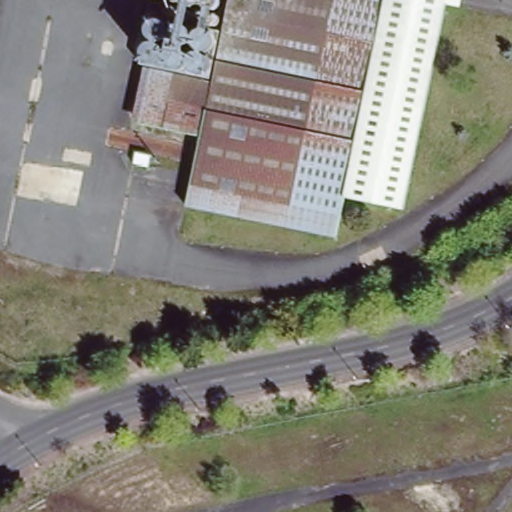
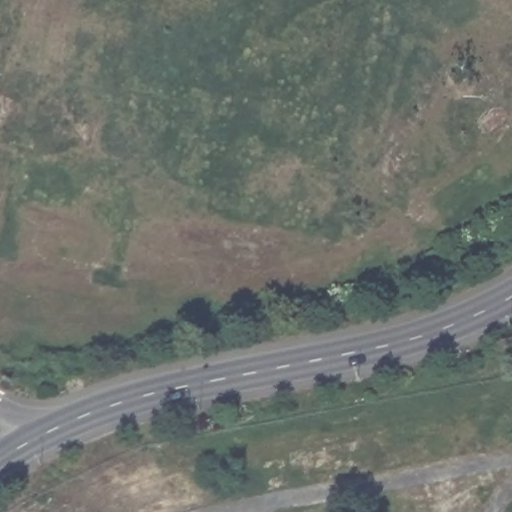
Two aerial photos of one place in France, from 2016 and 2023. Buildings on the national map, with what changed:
demolished [(155,69),(216,81),(232,0),(403,0),(332,201),(344,209),(339,236),(191,207),(205,139),(144,127),(152,81),(155,69)]
demolished [(170,1),(168,3),(167,5),(165,6),(162,6),(160,6),(158,6),(157,4),(155,2),(154,1),(153,0),(170,0),(170,1)]
demolished [(187,2),(187,5),(186,6),(185,8),(182,9),(180,10),(178,10),(176,9),(174,7),(172,6),(172,4),(171,2),(171,0),(187,0),(187,2)]
demolished [(205,1),(205,3),(205,5),(205,7),(203,10),(202,11),(200,12),(197,12),(195,12),(193,12),(192,11),(190,9),(189,7),(188,5),(188,3),(189,1),(189,0),(204,0),(205,1)]
demolished [(221,2),(222,4),(222,6),(222,8),(222,10),(221,12),(220,14),(217,15),(215,16),(213,16),(211,15),(209,14),(207,12),(207,10),(206,8),(206,6),(207,4),(207,2),(209,0),(220,0),(221,2)]
demolished [(332,201),(403,0),(433,0),(410,83),(375,203),(346,198),(344,209),(332,201)]
demolished [(410,83),(433,0),(446,0),(406,209),(375,203),(410,83)]
demolished [(173,14),(175,15),(176,16),(177,17),(177,18),(177,20),(177,21),(176,22),(175,22),(174,23),(173,24),(172,24),(170,23),(170,22),(169,22),(168,21),(167,20),(167,18),(168,17),(169,16),(170,15),(172,14),(173,14)]
demolished [(187,17),(188,17),(189,17),(190,19),(190,20),(190,21),(190,22),(190,23),(190,24),(189,25),(188,26),(187,26),(185,26),(184,26),(183,25),(182,24),(182,23),(182,22),(182,21),(182,20),(182,18),(183,17),(184,17),(185,17),(187,17)]
demolished [(201,21),(202,21),(204,22),(205,22),(205,23),(205,25),(205,26),(205,27),(204,28),(204,29),(202,30),(201,30),(200,30),(199,30),(197,29),(197,28),(196,27),(195,26),(195,25),(196,23),(197,22),(197,21),(199,21),(200,21),(201,21)]
demolished [(220,36),(213,76),(143,62),(150,22),(220,36)]
demolished [(213,22),(214,22),(215,24),(216,24),(217,25),(217,27),(217,29),(216,30),(215,31),(214,32),(213,32),(212,32),(210,32),(210,31),(209,30),(208,29),(207,27),(208,25),(209,24),(210,23),(210,22),(212,22),(213,22)]
demolished [(155,153),(152,165),(135,162),(137,150),(155,153)]

